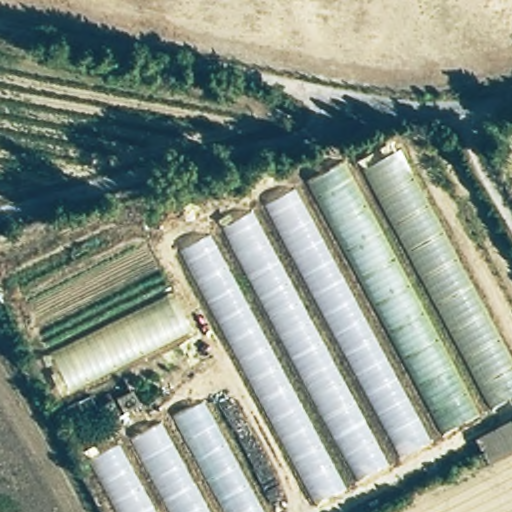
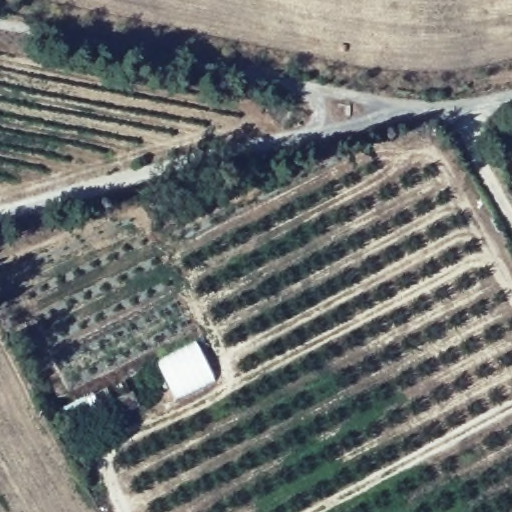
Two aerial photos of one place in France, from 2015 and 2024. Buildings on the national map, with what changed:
demolished [(310,510),(173,254),(347,159),(355,172),(403,146),(490,316),(512,360),(512,397),(453,430),(310,510)]
unchanged [(195,332),(70,391),(52,349),(173,292),(195,332)]
demolished [(79,459),(202,397),(263,512),(108,512),(79,459)]
demolished [(512,454),(487,468),(468,445),(512,420),(512,454)]

